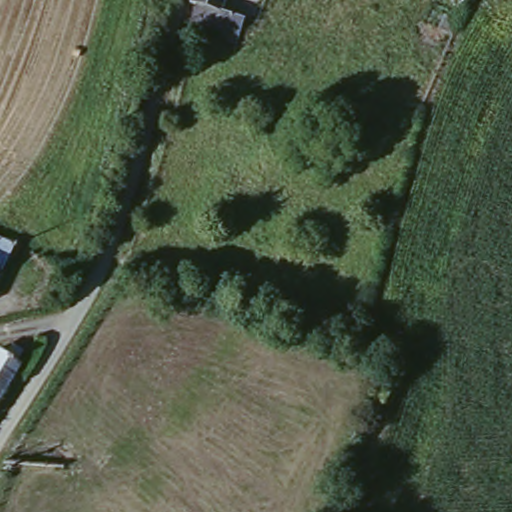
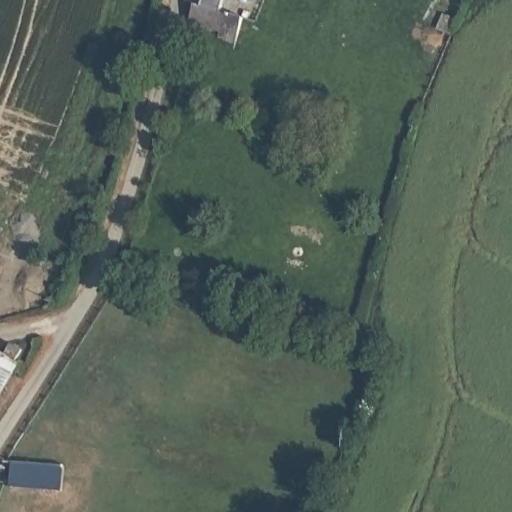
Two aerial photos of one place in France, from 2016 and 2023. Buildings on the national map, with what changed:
unchanged [(219,0),(218,4),(239,15),(231,37),(215,34),(217,27),(188,17),(191,0),(219,0)]
unchanged [(439,28),(444,15),(459,22),(453,36),(439,28)]
unchanged [(0,244),(12,250),(0,276),(0,244)]
unchanged [(6,342),(18,350),(11,361),(15,362),(0,386),(0,353),(1,354),(6,342)]
new [(64,465),(61,490),(13,487),(14,462),(64,465)]

